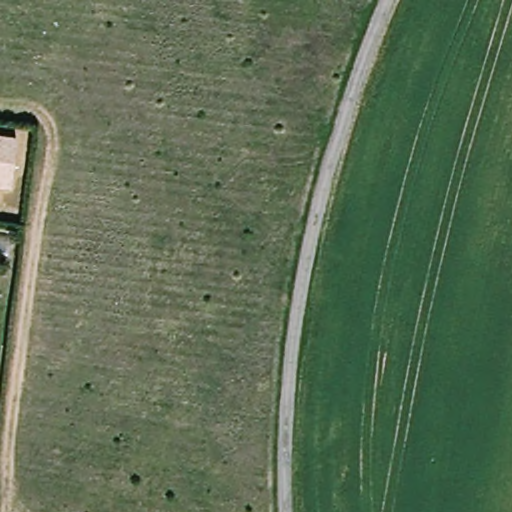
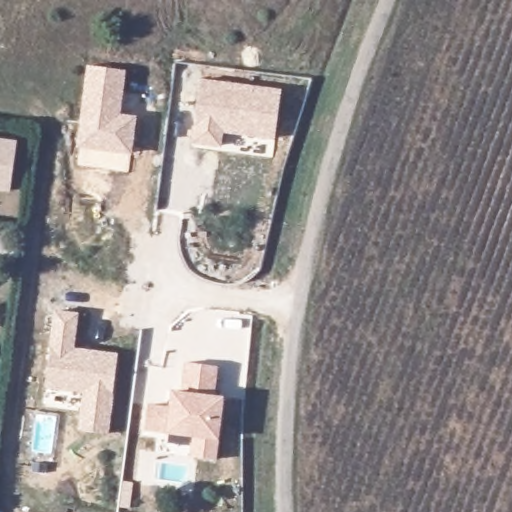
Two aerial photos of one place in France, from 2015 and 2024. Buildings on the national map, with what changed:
new [(132,153),(77,147),(87,64),(127,69),(122,112),(138,115),(132,153)]
new [(225,132),(222,147),(192,144),(202,77),(282,89),(275,140),(225,132)]
unchanged [(10,191),(0,190),(0,139),(17,141),(10,191)]
new [(77,430),(83,393),(45,388),(53,310),(80,311),(75,346),(120,352),(109,433),(77,430)]
new [(188,456),(191,436),(168,433),(143,430),(150,401),(170,403),(172,389),(181,390),(185,361),(220,366),(217,393),(225,394),(220,438),(217,460),(188,456)]

